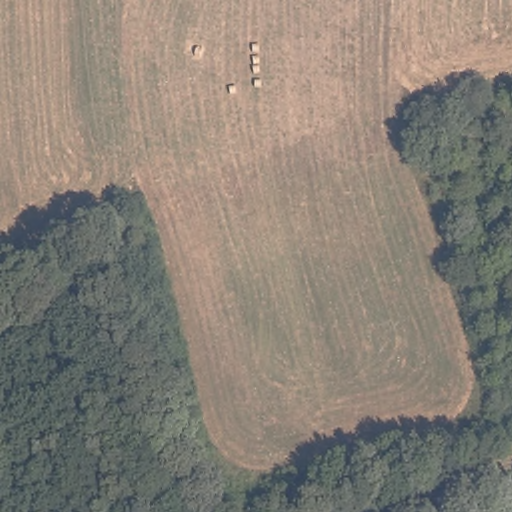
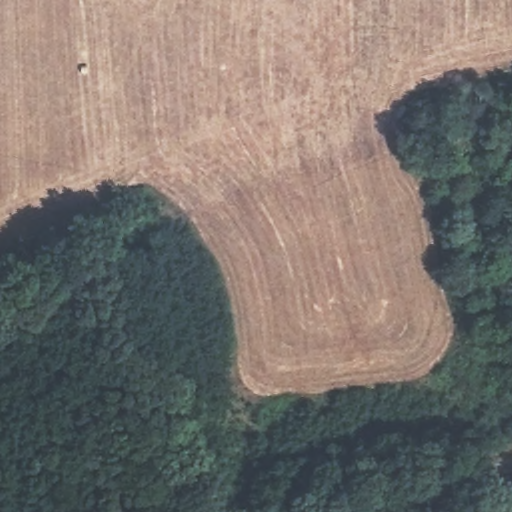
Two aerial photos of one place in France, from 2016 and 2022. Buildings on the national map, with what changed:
[]

